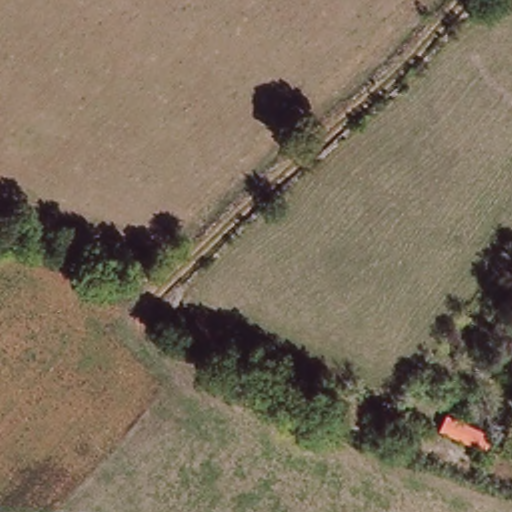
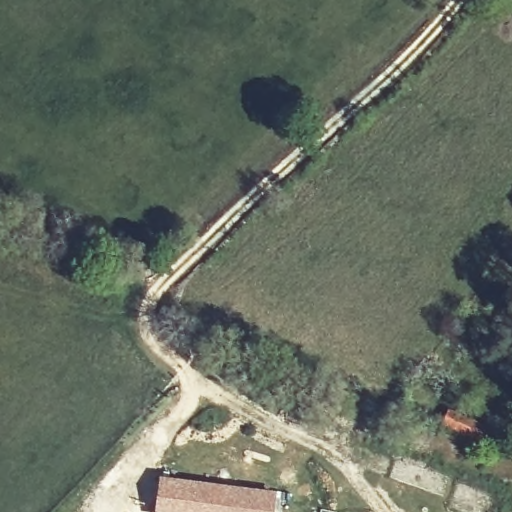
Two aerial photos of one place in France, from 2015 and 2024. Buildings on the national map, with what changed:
unchanged [(446,408),(491,428),(485,445),(439,425),(446,408)]
new [(155,512),(159,479),(275,493),(275,512),(155,512)]

